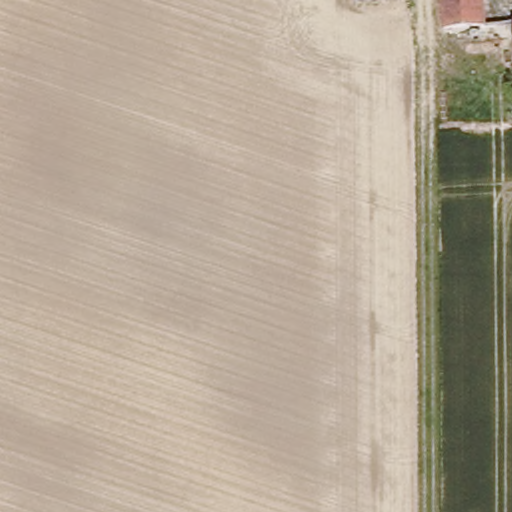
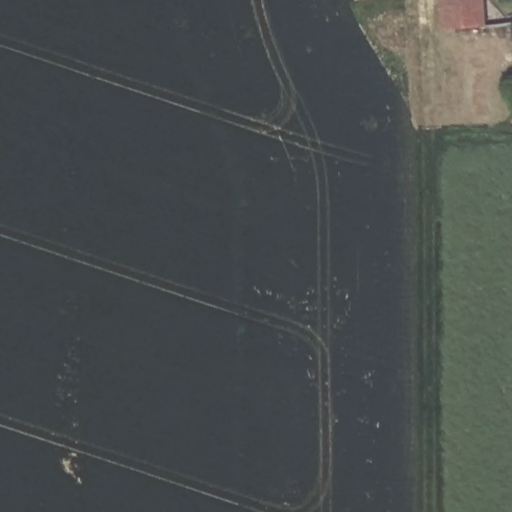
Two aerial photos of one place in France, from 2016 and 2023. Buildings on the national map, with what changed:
unchanged [(444,31),(440,0),(493,0),(495,25),(444,31)]
unchanged [(507,16),(512,16),(512,67),(507,16)]

